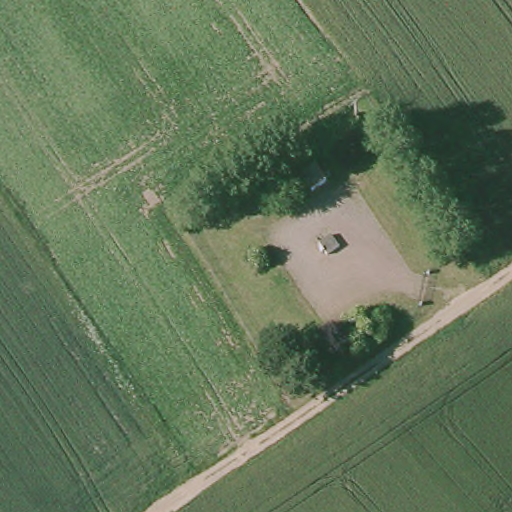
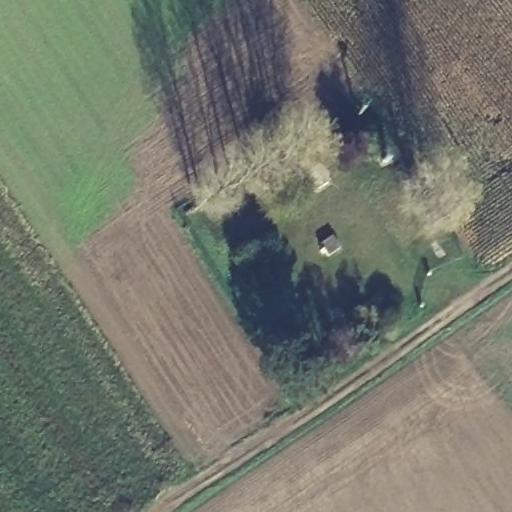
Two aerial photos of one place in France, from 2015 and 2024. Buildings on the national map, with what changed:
unchanged [(325,184),(311,194),(300,178),(315,168),(325,184)]
unchanged [(340,251),(329,257),(322,245),(332,239),(340,251)]

